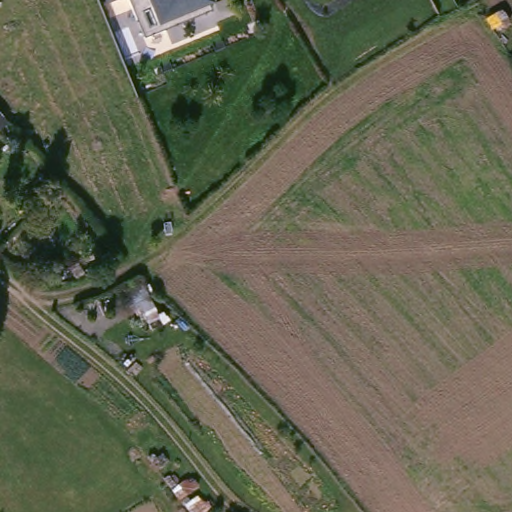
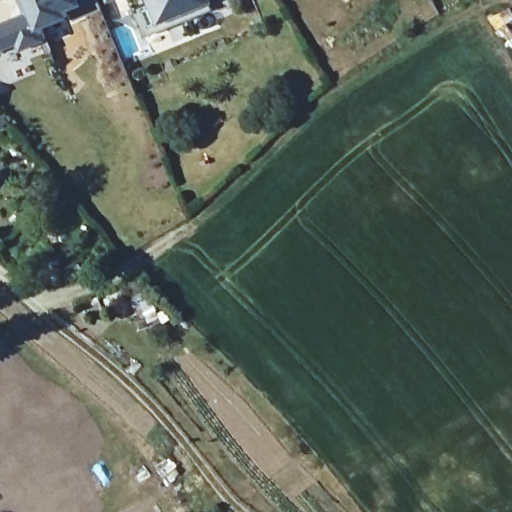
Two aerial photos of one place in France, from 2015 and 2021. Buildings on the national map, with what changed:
new [(81,5),(64,12),(66,17),(39,29),(43,41),(19,51),(16,45),(0,51),(0,25),(31,11),(27,0),(93,0),(81,5)]
unchanged [(104,3),(103,0),(110,0),(104,3)]
unchanged [(128,0),(211,0),(212,3),(206,6),(208,11),(144,37),(128,0)]
demolished [(0,17),(0,7),(3,17),(0,17)]
unchanged [(0,104),(0,100),(2,102),(0,104)]

